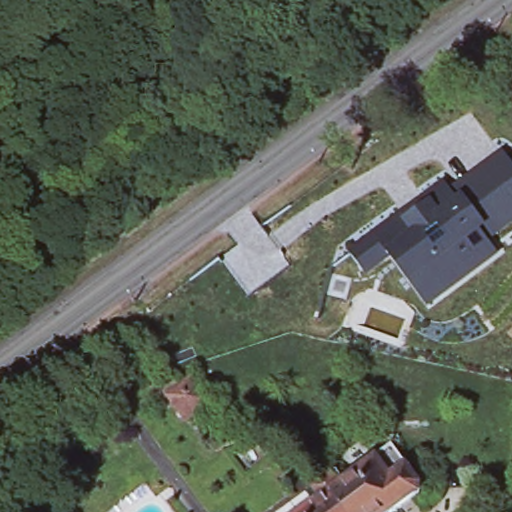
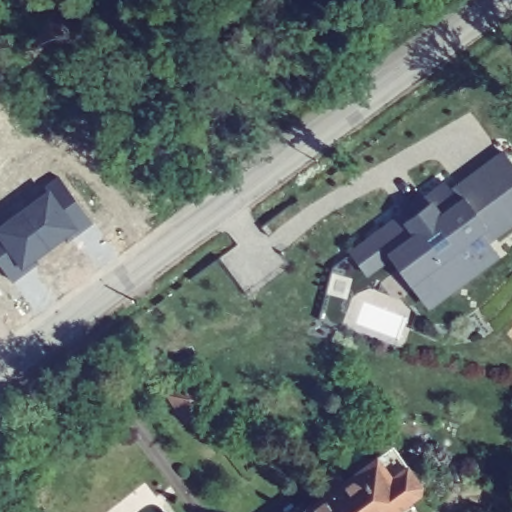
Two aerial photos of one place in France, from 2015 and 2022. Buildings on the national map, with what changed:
unchanged [(449,187),(503,151),(512,162),(512,226),(490,242),(500,256),(429,308),(393,259),(367,276),(349,249),(444,181),(449,187)]
new [(49,194),(44,189),(59,176),(93,225),(68,243),(67,239),(35,260),(38,264),(12,283),(0,268),(0,227),(49,194)]
unchanged [(175,404),(189,393),(201,385),(220,409),(207,419),(195,428),(175,404)]
unchanged [(341,489),(395,451),(424,491),(394,512),(343,512),(325,484),(332,478),(341,489)]
unchanged [(315,491),(325,484),(343,512),(308,512),(322,502),(315,491)]

